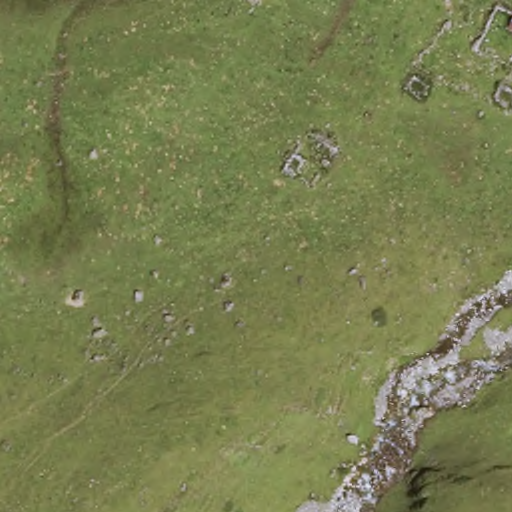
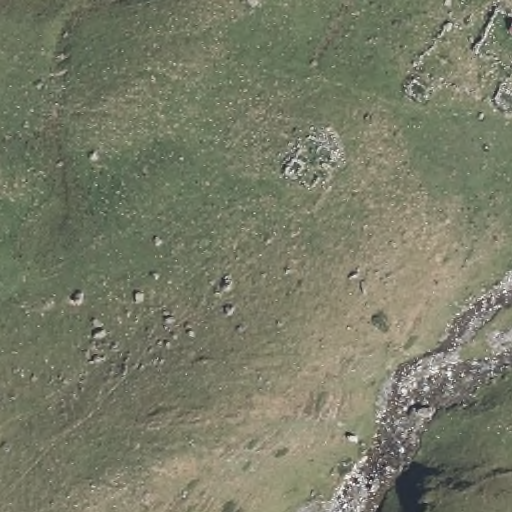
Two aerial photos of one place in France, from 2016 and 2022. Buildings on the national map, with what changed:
unchanged [(511,33),(512,30),(512,33),(511,33)]

